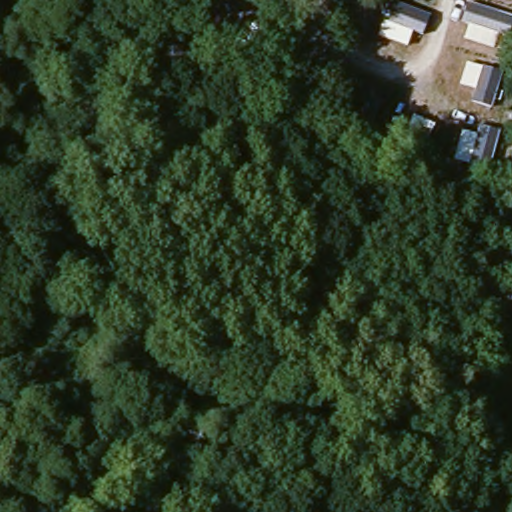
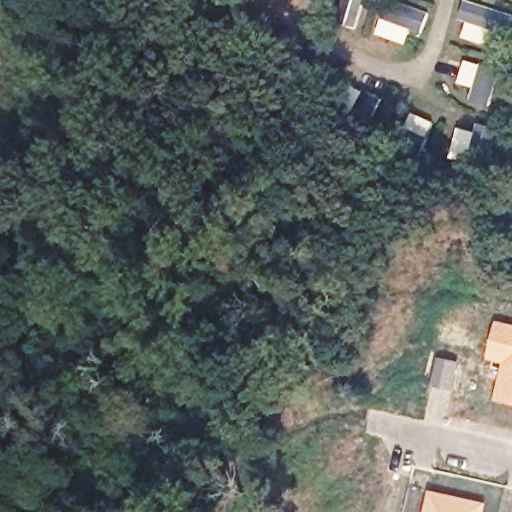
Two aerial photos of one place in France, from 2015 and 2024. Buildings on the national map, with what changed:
new [(512,325),(512,406),(495,402),(502,364),(488,360),(497,322),(512,325)]
new [(435,357),(458,362),(452,392),(428,386),(435,357)]
new [(428,490),(486,503),(484,512),(423,512),(428,490)]

